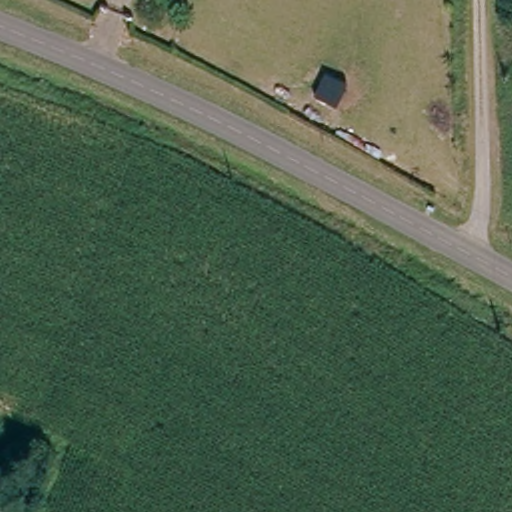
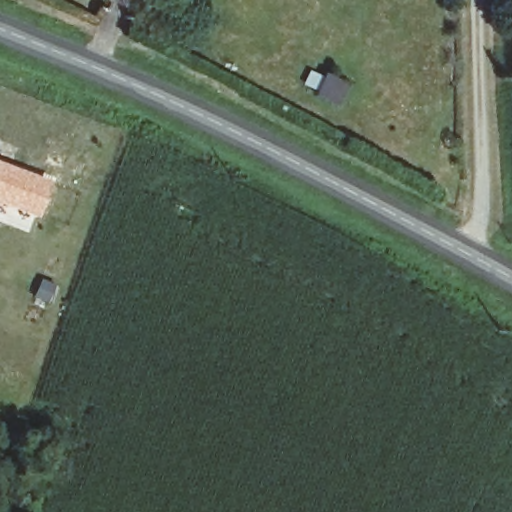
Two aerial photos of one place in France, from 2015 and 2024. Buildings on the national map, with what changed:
new [(50,180),(35,215),(0,202),(0,161),(50,180)]

